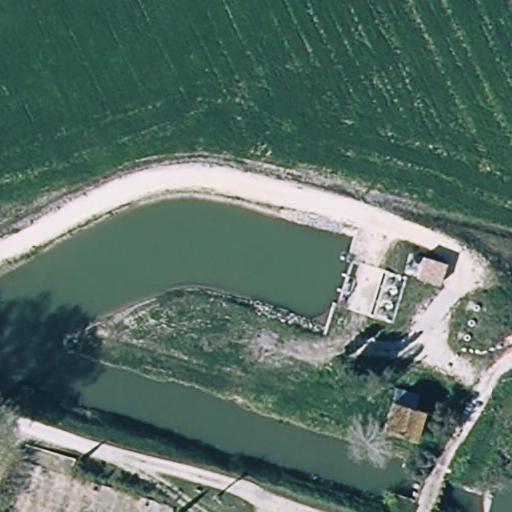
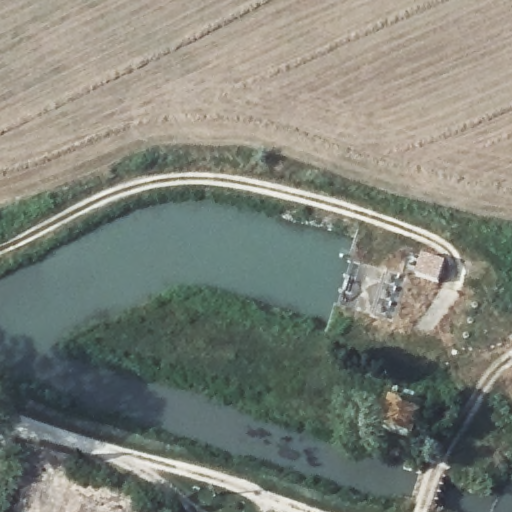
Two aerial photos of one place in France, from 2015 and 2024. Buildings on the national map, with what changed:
unchanged [(424,255),(447,264),(438,286),(418,279),(424,255)]
unchanged [(410,442),(377,431),(387,398),(420,409),(410,442)]

